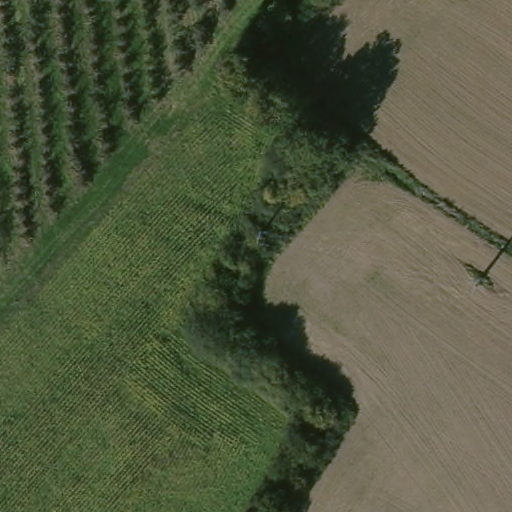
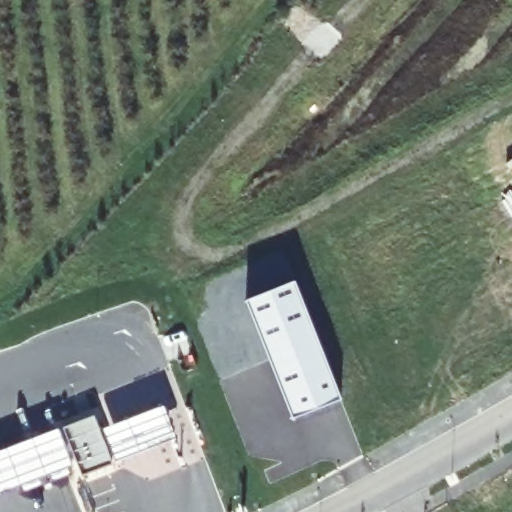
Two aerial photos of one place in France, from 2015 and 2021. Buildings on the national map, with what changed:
new [(295,281),(342,400),(292,419),(246,300),(295,281)]
new [(157,406),(170,438),(107,463),(94,431),(157,406)]
new [(90,419),(94,431),(107,463),(108,467),(77,479),(59,431),(90,419)]

